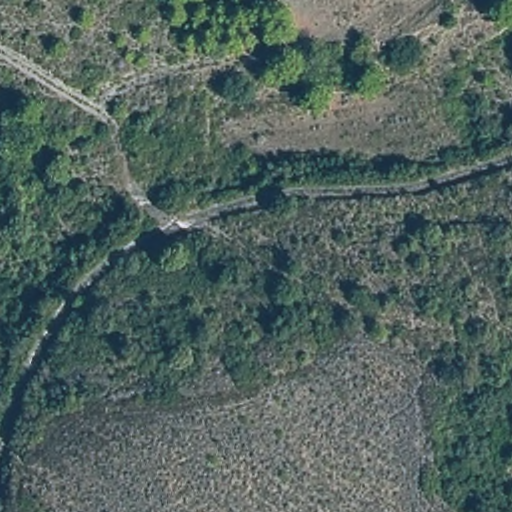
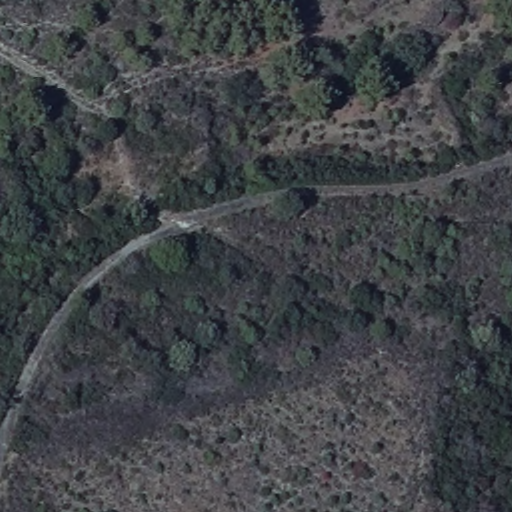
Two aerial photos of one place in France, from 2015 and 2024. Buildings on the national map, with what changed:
[]

